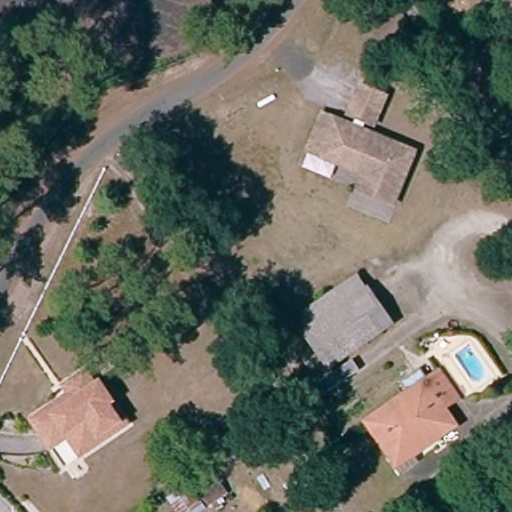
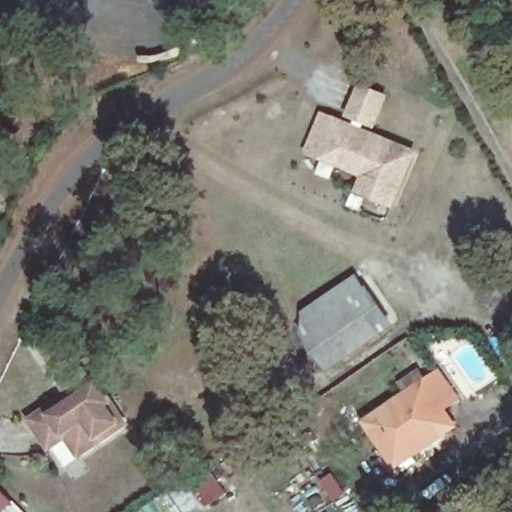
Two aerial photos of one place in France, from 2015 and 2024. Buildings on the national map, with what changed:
unchanged [(355,82),(386,95),(373,126),(342,114),(355,82)]
unchanged [(324,159),(309,153),(316,136),(323,117),(414,154),(394,204),(360,192),(367,176),(324,159)]
unchanged [(298,310),(352,273),(361,287),(298,330),(298,310)]
unchanged [(361,287),(363,286),(391,325),(324,372),(296,332),(298,330),(361,287)]
unchanged [(45,448),(26,420),(43,408),(64,395),(57,385),(78,370),(88,386),(93,382),(107,403),(121,424),(116,427),(95,441),(57,467),(45,448)]
unchanged [(413,388),(428,377),(446,403),(432,413),(444,430),(402,460),(397,451),(381,462),(357,427),(413,388)]
unchanged [(213,503),(201,512),(187,512),(183,506),(180,509),(174,500),(169,492),(193,476),(213,503)]

